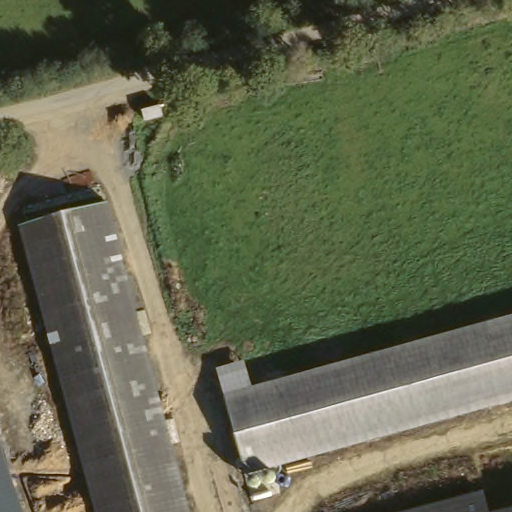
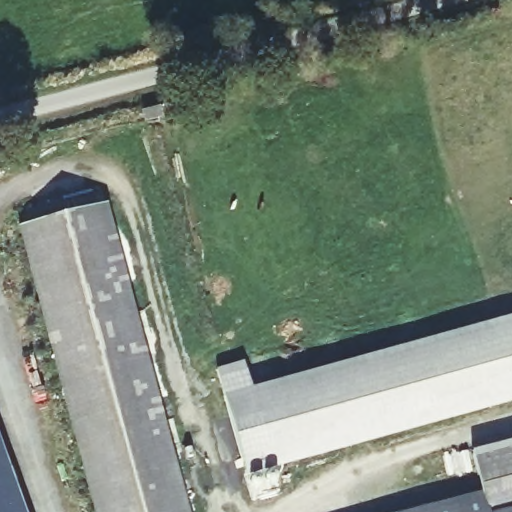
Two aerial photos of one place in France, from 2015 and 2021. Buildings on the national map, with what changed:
unchanged [(190,512),(97,512),(52,367),(4,221),(57,204),(92,193),(190,512)]
unchanged [(244,361),(252,387),(512,315),(512,402),(247,476),(216,369),(244,361)]
unchanged [(0,512),(0,438),(26,512),(0,512)]
new [(412,512),(484,494),(472,451),(512,441),(512,512),(412,512)]

